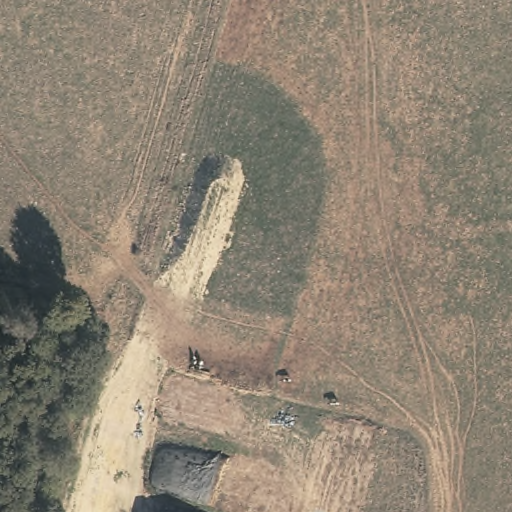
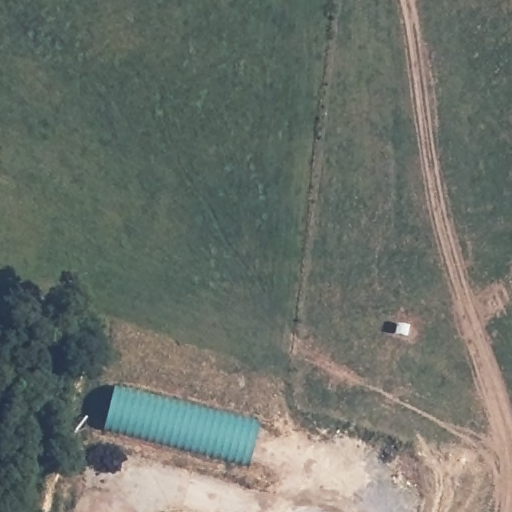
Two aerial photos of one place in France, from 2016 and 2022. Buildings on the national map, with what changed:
new [(248,462),(108,427),(115,389),(259,425),(248,462)]

